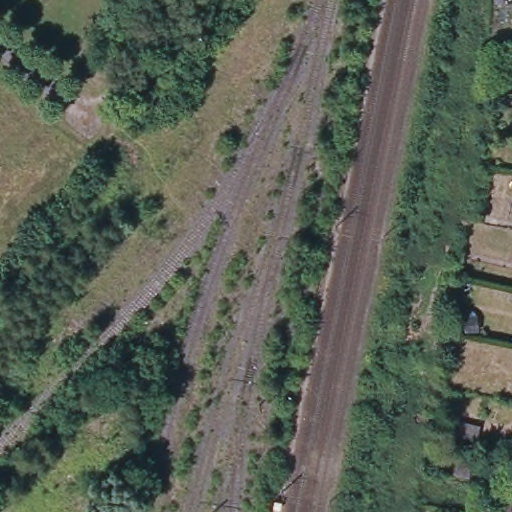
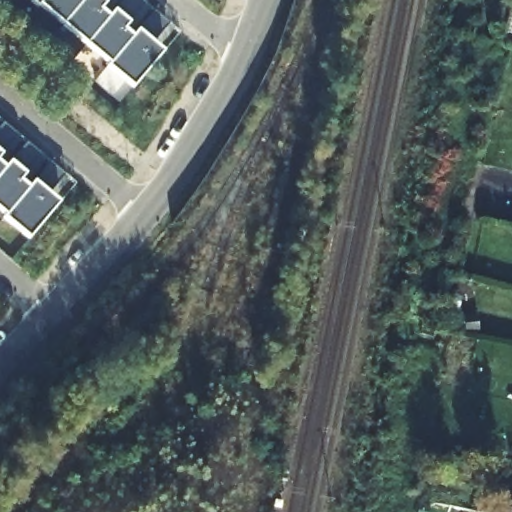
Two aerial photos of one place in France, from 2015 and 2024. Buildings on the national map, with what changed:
new [(150,42),(162,52),(133,86),(108,65),(112,62),(39,3),(36,6),(29,0),(141,0),(168,23),(150,42)]
new [(63,174),(47,192),(58,202),(29,237),(6,218),(8,215),(0,208),(0,121),(63,174)]
unchanged [(165,363),(148,357),(155,338),(172,343),(165,363)]
demolished [(478,443),(457,439),(460,422),(481,426),(478,443)]
demolished [(470,481),(442,475),(445,458),(473,464),(470,481)]
unchanged [(507,492),(512,493),(512,512),(502,512),(507,492)]

